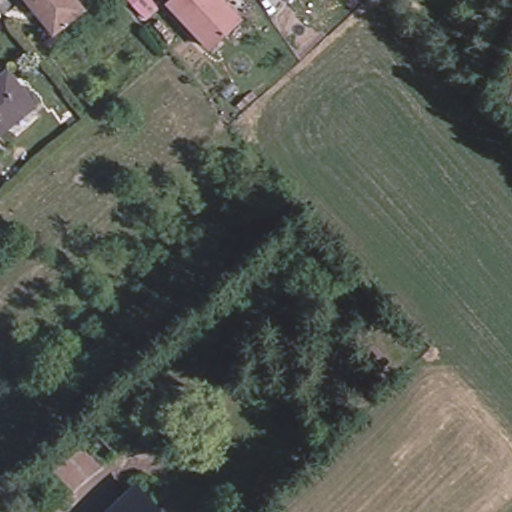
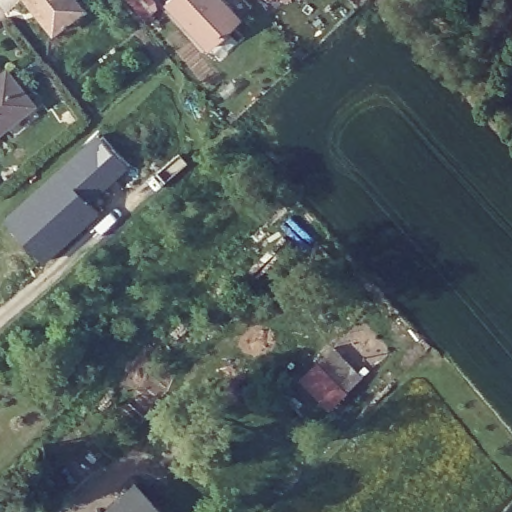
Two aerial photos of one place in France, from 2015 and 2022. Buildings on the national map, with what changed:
unchanged [(50,30),(27,0),(74,0),(80,9),(50,30)]
unchanged [(169,0),(247,0),(252,5),(239,18),(209,46),(167,2),(169,0)]
unchanged [(32,96),(0,121),(0,71),(7,65),(32,96)]
new [(100,138),(127,171),(90,205),(100,215),(42,269),(5,222),(100,138)]
unchanged [(138,484),(163,512),(106,512),(138,484)]

